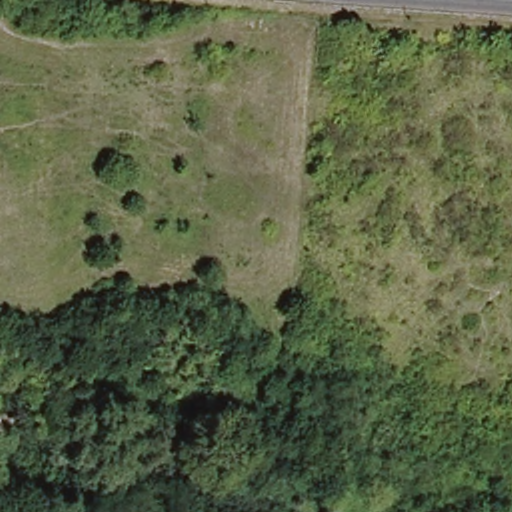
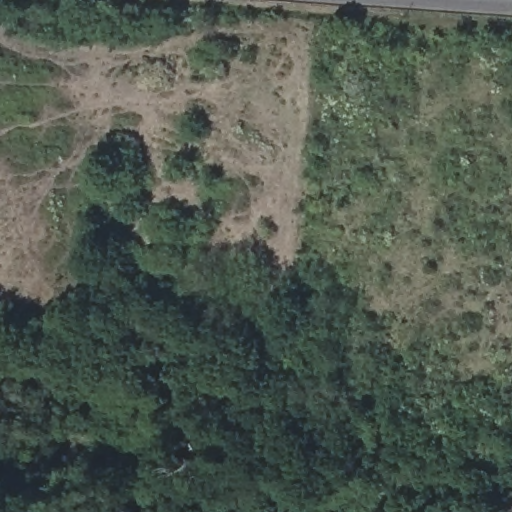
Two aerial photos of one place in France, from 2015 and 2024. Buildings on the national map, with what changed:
[]

